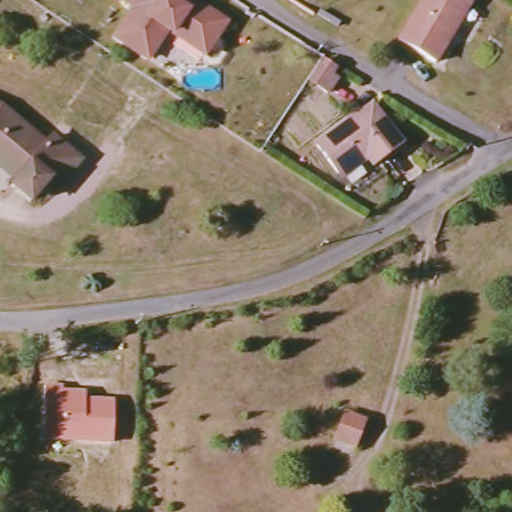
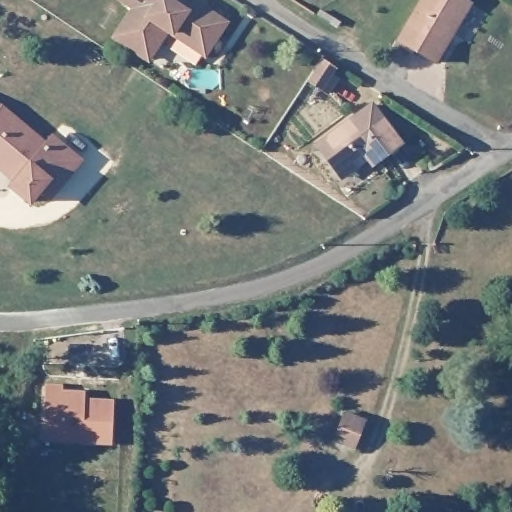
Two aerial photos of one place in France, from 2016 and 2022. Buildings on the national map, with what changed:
unchanged [(162,36),(143,66),(110,44),(129,15),(108,1),(108,0),(166,0),(183,11),(187,6),(221,29),(203,56),(199,61),(167,40),(162,36)]
unchanged [(420,0),(465,0),(471,4),(453,35),(437,64),(398,40),(420,0)]
unchanged [(322,60),(335,69),(322,89),(309,80),(322,60)]
unchanged [(0,153),(0,106),(3,106),(25,125),(48,145),(54,136),(81,159),(72,171),(52,196),(43,190),(40,194),(20,179),(24,173),(0,153)]
unchanged [(372,106),(400,145),(371,166),(364,156),(338,174),(317,145),(372,106)]
unchanged [(63,384),(63,393),(86,394),(86,401),(115,400),(114,449),(44,446),(44,383),(63,384)]

